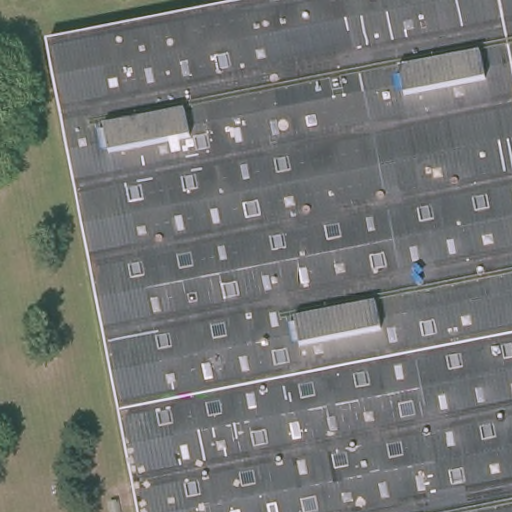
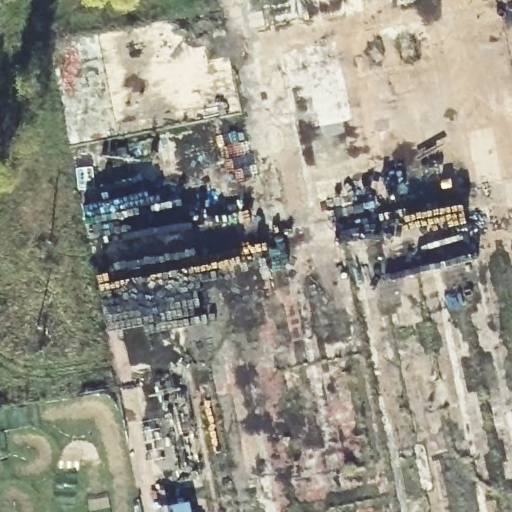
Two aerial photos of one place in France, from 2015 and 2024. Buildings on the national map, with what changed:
demolished [(179,0),(512,0),(512,512),(127,512),(26,32),(179,0)]

